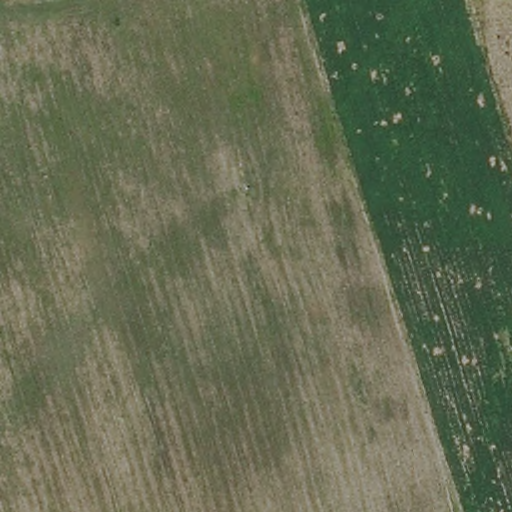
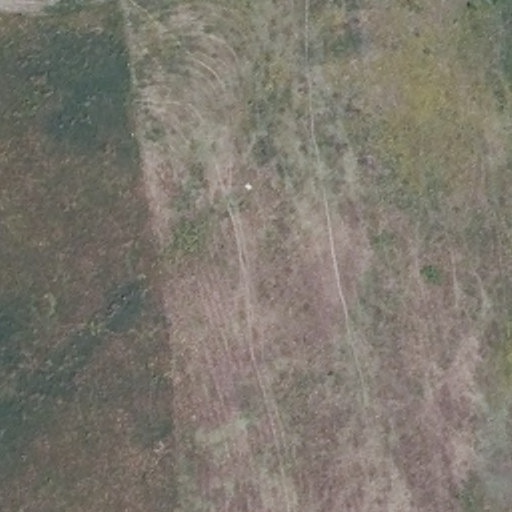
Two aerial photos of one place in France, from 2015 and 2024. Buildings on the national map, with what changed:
[]

